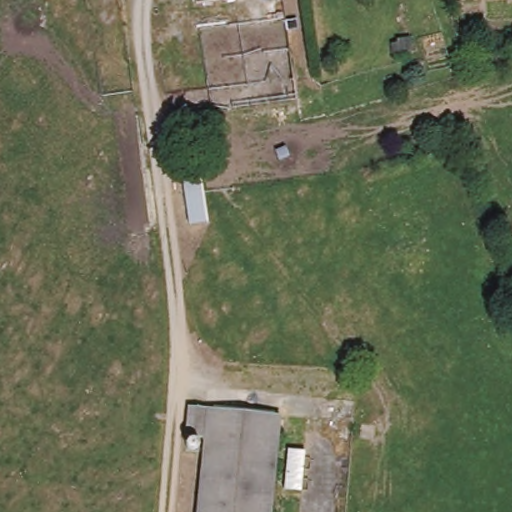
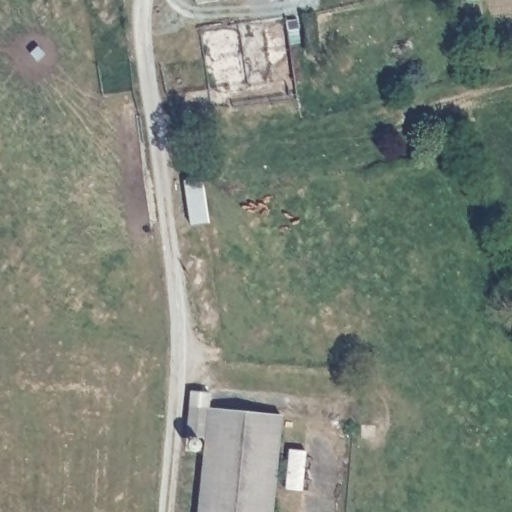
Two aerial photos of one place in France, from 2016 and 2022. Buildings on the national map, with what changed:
unchanged [(192,0),(196,0),(192,1),(192,0)]
unchanged [(269,512),(198,512),(203,441),(181,440),(184,408),(275,413),(269,512)]

